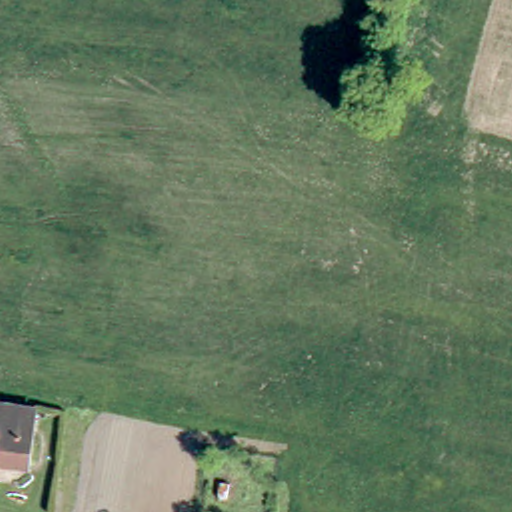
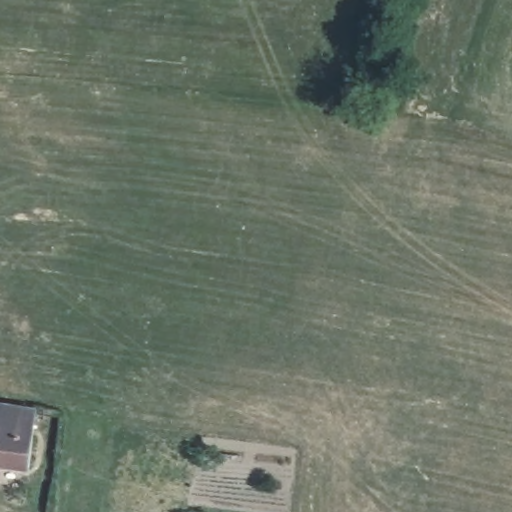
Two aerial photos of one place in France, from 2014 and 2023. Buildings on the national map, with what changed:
unchanged [(34,471),(0,465),(0,408),(40,415),(34,471)]

